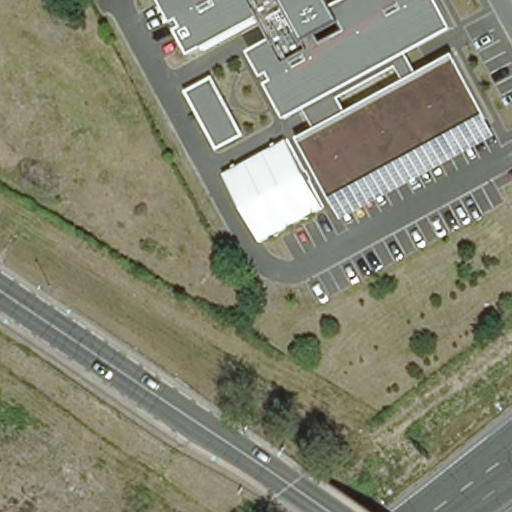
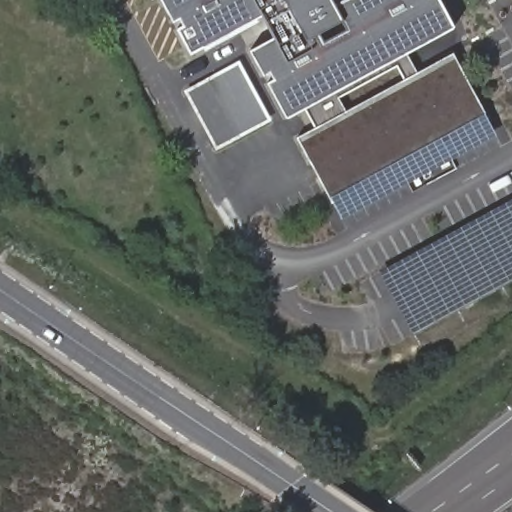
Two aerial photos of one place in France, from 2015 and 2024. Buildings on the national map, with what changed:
unchanged [(408,54),(419,73),(453,54),(498,138),(342,220),(297,138),(314,127),(304,108),(285,119),(250,53),(277,38),(263,15),(190,54),(161,0),(439,0),(454,29),(408,54)]
new [(213,76),(240,61),(272,120),(244,136),(213,76)]
unchanged [(214,153),(183,92),(213,76),(244,136),(214,153)]
new [(378,272),(512,199),(512,282),(413,335),(378,272)]

